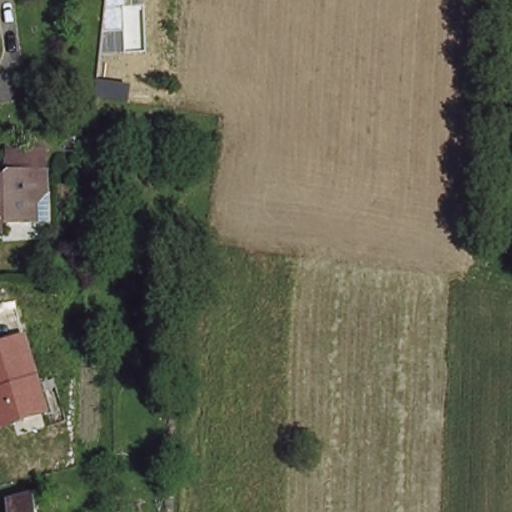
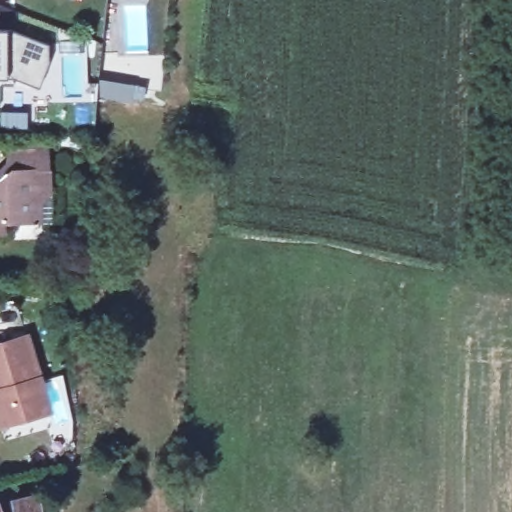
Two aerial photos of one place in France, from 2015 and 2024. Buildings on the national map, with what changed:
new [(12,78),(4,78),(0,78),(0,30),(5,30),(47,44),(47,61),(37,88),(12,78)]
unchanged [(57,188),(47,188),(37,197),(37,217),(12,216),(10,231),(0,231),(0,177),(10,177),(20,166),(19,151),(58,149),(57,188)]
unchanged [(0,431),(0,344),(30,336),(52,415),(0,431)]
unchanged [(40,498),(39,512),(12,512),(11,502),(40,498)]

